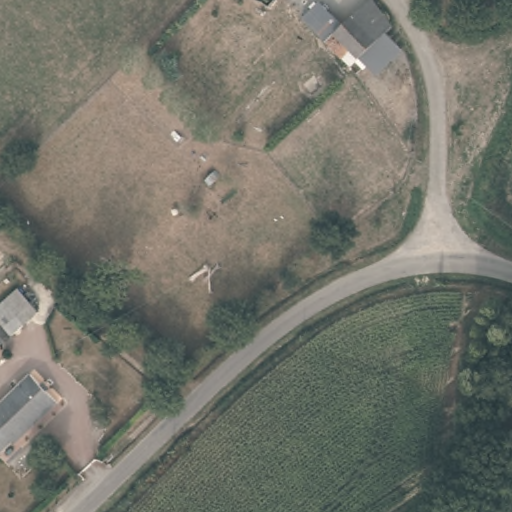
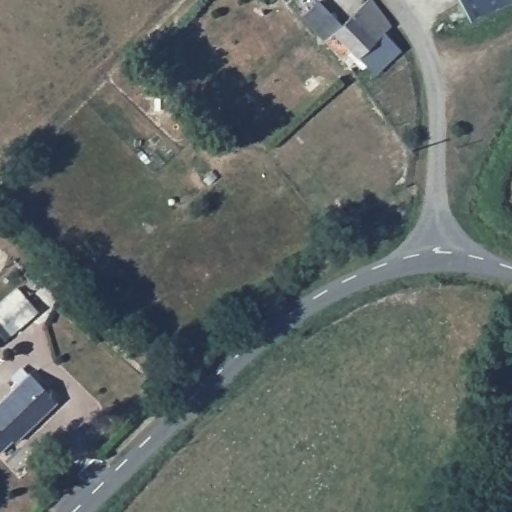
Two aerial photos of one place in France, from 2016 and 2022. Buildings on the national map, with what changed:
unchanged [(366,52),(355,62),(328,35),(308,15),(323,0),(343,21),(366,0),(378,0),(397,21),(397,22),(391,28),(407,44),(381,68),(366,52)]
new [(461,0),(510,0),(472,20),(461,0)]
unchanged [(35,318),(7,341),(0,332),(0,303),(13,292),(35,318)]
unchanged [(58,410),(14,447),(11,443),(0,452),(0,407),(32,380),(58,410)]

